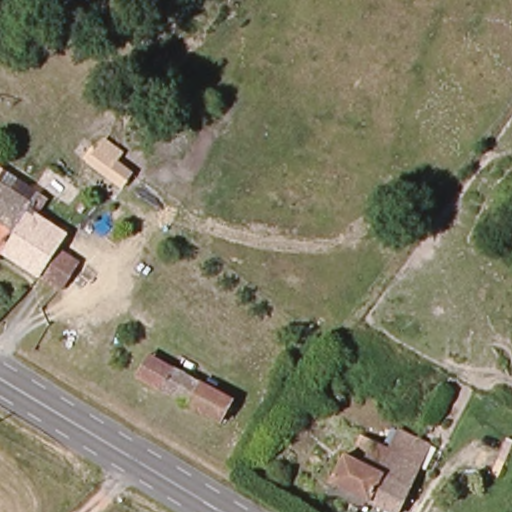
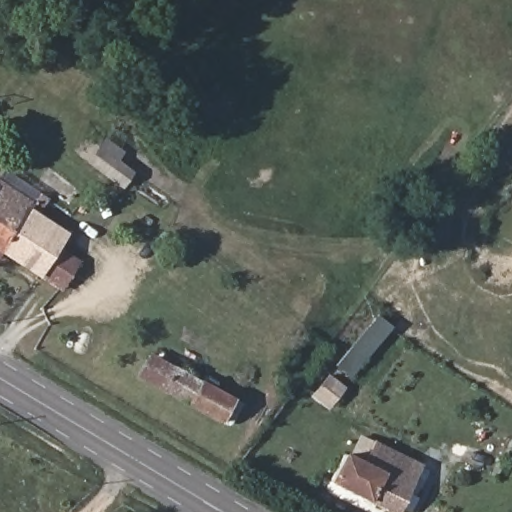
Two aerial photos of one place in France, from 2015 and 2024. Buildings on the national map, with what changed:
unchanged [(139,173),(122,193),(90,172),(107,147),(139,173)]
unchanged [(39,205),(29,222),(54,238),(45,253),(71,268),(62,283),(11,252),(0,245),(0,183),(39,205)]
unchanged [(11,252),(0,270),(0,245),(11,252)]
new [(352,377),(336,365),(377,315),(392,328),(352,377)]
unchanged [(218,392),(211,413),(157,391),(164,367),(218,392)]
unchanged [(344,485),(357,456),(375,464),(383,445),(403,454),(408,442),(432,452),(403,512),(397,512),(344,485)]

